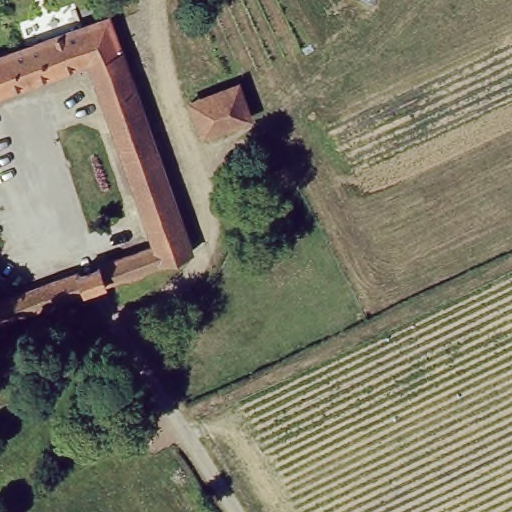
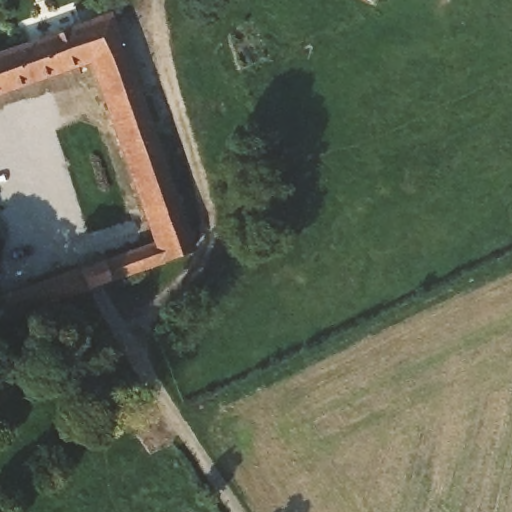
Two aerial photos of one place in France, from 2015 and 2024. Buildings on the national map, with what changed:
unchanged [(365,0),(375,0),(372,5),(365,0)]
unchanged [(80,61),(0,89),(0,44),(105,7),(193,245),(0,316),(0,285),(144,239),(80,61)]
demolished [(235,72),(248,113),(200,135),(183,94),(235,72)]

